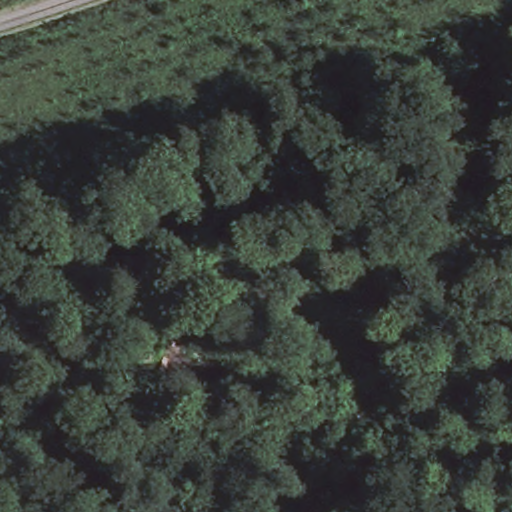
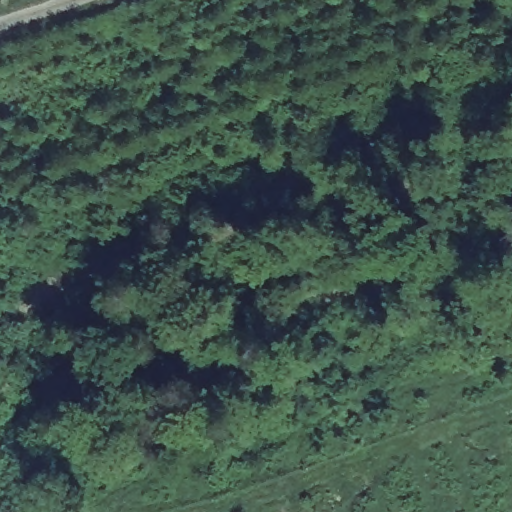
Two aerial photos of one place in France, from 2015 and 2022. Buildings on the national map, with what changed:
[]

